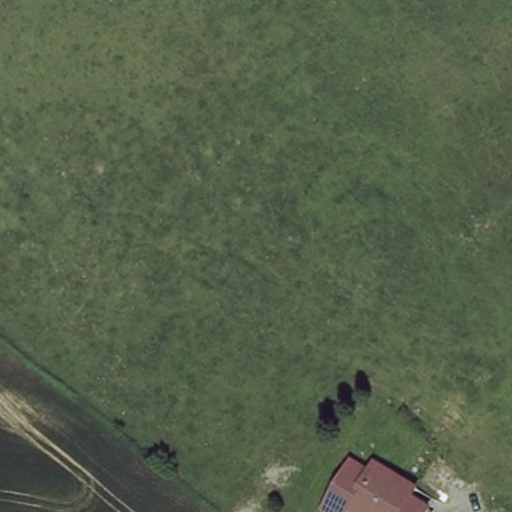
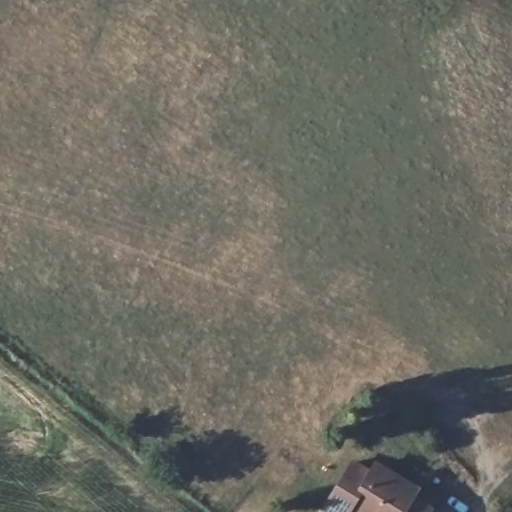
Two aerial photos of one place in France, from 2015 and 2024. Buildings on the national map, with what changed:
unchanged [(342,512),(341,512),(326,503),(353,456),(370,466),(376,457),(417,482),(412,491),(430,503),(424,512),(369,512),(350,501),(342,512)]

